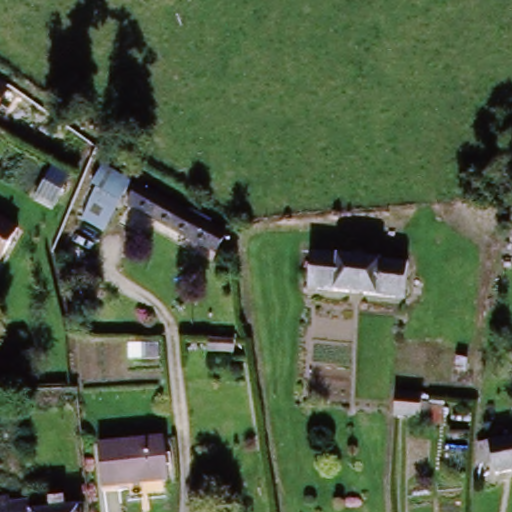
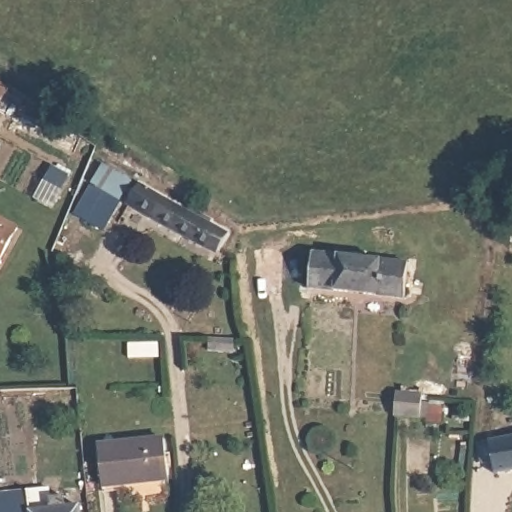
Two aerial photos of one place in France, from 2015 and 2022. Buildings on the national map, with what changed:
unchanged [(0,104),(0,86),(9,92),(0,104)]
unchanged [(104,231),(82,221),(97,189),(119,200),(104,231)]
unchanged [(222,253),(157,216),(143,209),(152,194),(165,200),(232,236),(222,253)]
unchanged [(0,257),(0,222),(5,225),(17,235),(0,257)]
unchanged [(410,304),(308,293),(312,256),(413,267),(410,304)]
unchanged [(237,355),(200,355),(199,340),(237,340),(237,355)]
unchanged [(444,423),(395,418),(396,393),(445,403),(444,423)]
unchanged [(97,448),(165,443),(167,486),(100,491),(97,448)]
unchanged [(495,466),(487,467),(483,452),(482,450),(512,443),(512,475),(500,478),(495,466)]
unchanged [(81,512),(0,512),(0,505),(20,503),(29,503),(30,511),(32,511),(46,510),(48,510),(47,501),(69,500),(69,502),(69,507),(80,506),(81,512)]

